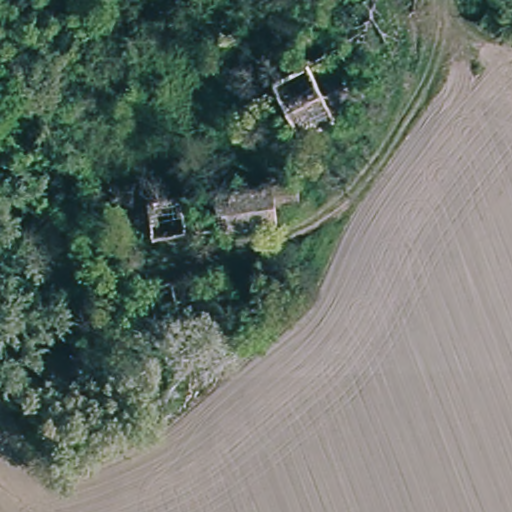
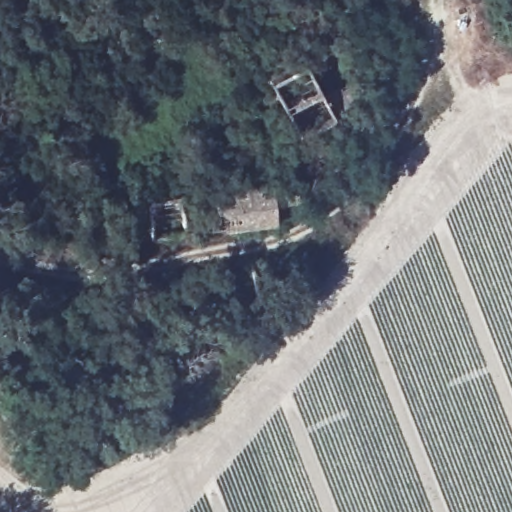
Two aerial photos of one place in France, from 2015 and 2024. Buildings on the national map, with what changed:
unchanged [(360,95),(331,111),(334,117),(299,135),(269,79),(334,45),(360,95)]
unchanged [(219,230),(214,186),(273,176),(280,219),(219,230)]
unchanged [(153,236),(148,197),(186,194),(186,235),(153,236)]
unchanged [(224,280),(223,267),(249,263),(253,300),(232,305),(161,319),(157,295),(224,280)]

